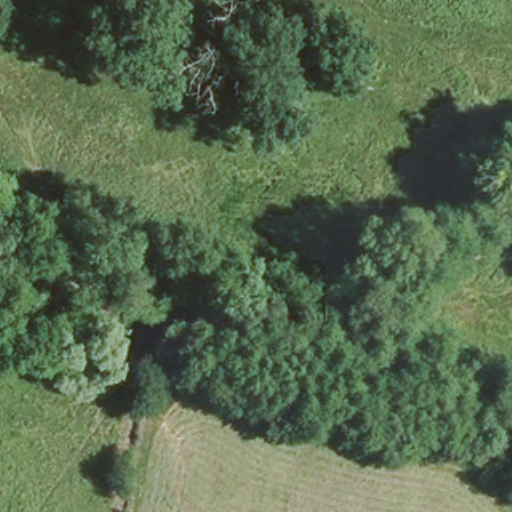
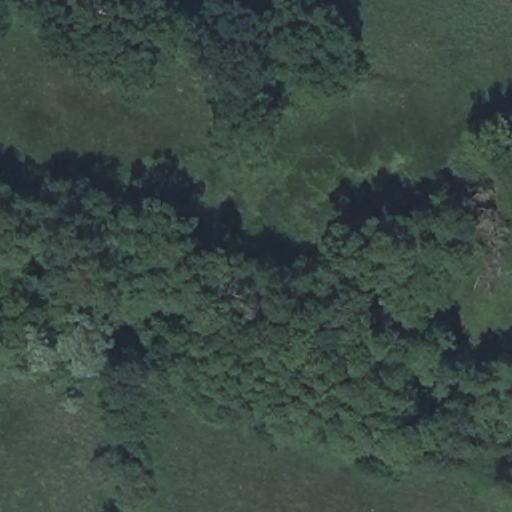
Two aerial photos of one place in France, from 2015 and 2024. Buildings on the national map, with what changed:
[]

